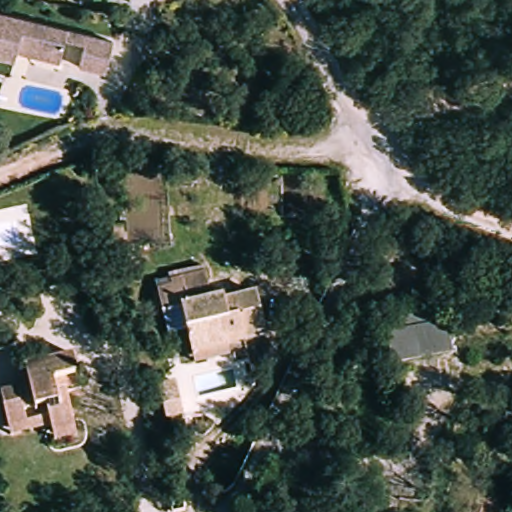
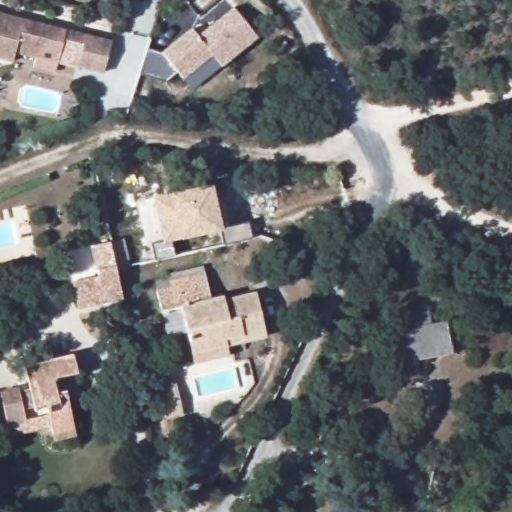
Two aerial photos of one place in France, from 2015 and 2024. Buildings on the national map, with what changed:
new [(162,51),(192,27),(198,34),(208,27),(233,6),(258,35),(221,64),(212,53),(183,77),(178,71),(165,81),(138,73),(147,46),(162,51)]
unchanged [(15,60),(0,57),(0,14),(116,41),(107,72),(80,65),(87,43),(68,38),(63,54),(60,62),(18,52),(15,60)]
new [(221,227),(248,220),(251,237),(223,244),(218,230),(180,238),(172,240),(175,255),(154,260),(149,242),(161,241),(151,196),(169,191),(211,183),(221,227)]
new [(98,281),(91,249),(110,244),(123,301),(79,312),(73,287),(98,281)]
unchanged [(204,268),(209,297),(173,302),(171,285),(169,274),(204,268)]
unchanged [(185,357),(183,346),(181,328),(159,330),(153,287),(171,285),(173,302),(209,297),(260,290),(266,334),(228,340),(229,351),(185,357)]
unchanged [(384,367),(376,315),(427,304),(428,323),(446,318),(451,353),(384,367)]
unchanged [(24,360),(74,350),(78,369),(54,374),(57,387),(66,387),(73,423),(46,428),(40,399),(20,402),(23,419),(0,422),(0,420),(0,386),(16,382),(18,387),(28,385),(24,360)]
unchanged [(156,385),(174,382),(176,402),(178,411),(159,414),(158,404),(156,385)]
demolished [(195,445),(213,443),(214,452),(196,455),(195,445)]

